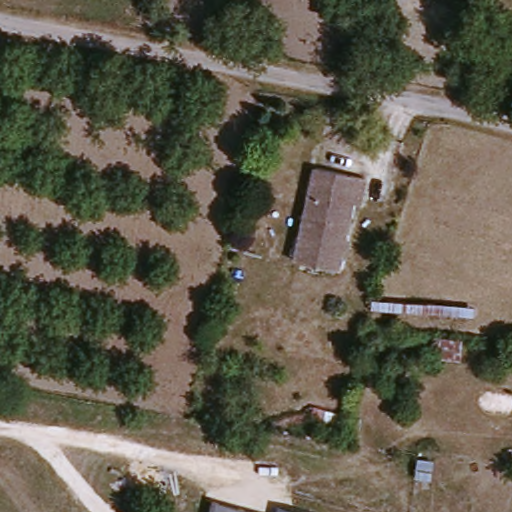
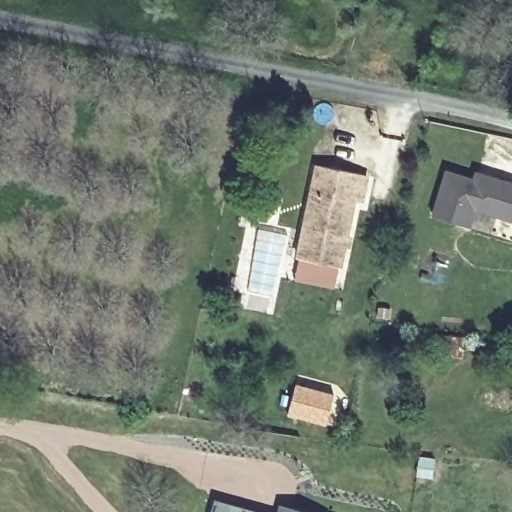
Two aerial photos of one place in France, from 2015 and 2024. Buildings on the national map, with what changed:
unchanged [(338,270),(295,261),(313,167),(364,177),(358,207),(351,205),(338,270)]
new [(446,173),(473,181),(475,174),(512,185),(512,221),(474,210),(469,228),(431,217),(446,173)]
new [(298,384),(335,395),(325,424),(288,413),(298,384)]
unchanged [(214,500),(260,512),(211,512),(214,500)]
unchanged [(281,504),(314,512),(279,512),(281,504)]

